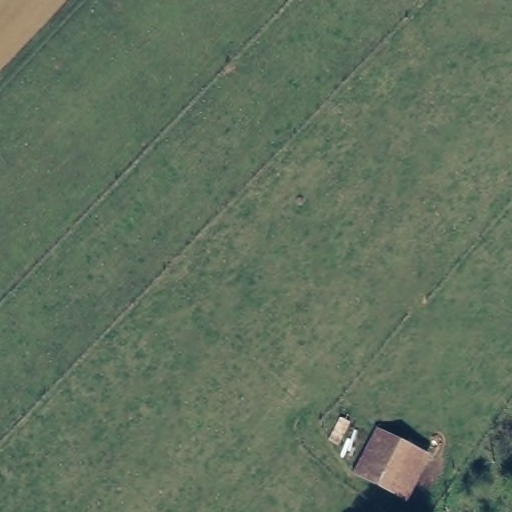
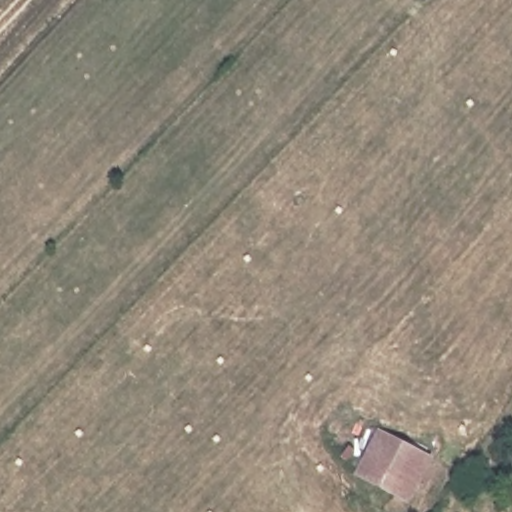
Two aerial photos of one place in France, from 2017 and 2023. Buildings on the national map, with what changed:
unchanged [(422,450),(400,490),(355,463),(377,424),(422,450)]

